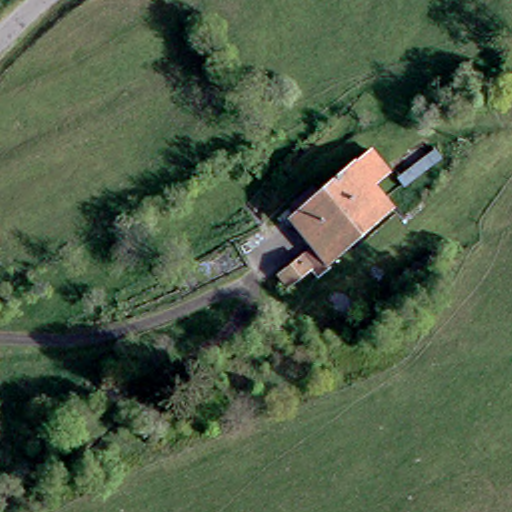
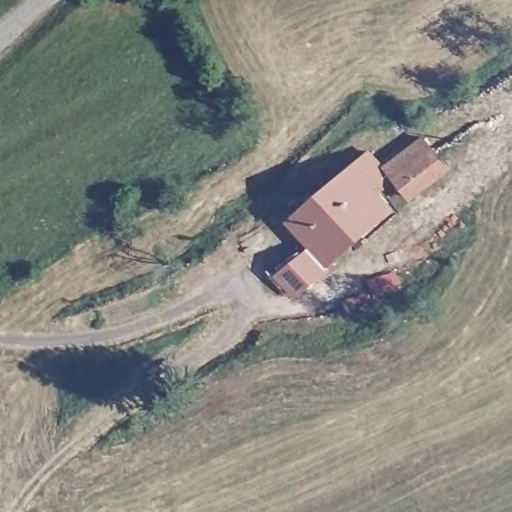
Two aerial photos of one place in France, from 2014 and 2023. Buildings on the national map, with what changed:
new [(378,191),(392,180),(384,170),(426,136),(452,169),(410,200),(399,185),(382,196),(378,191)]
unchanged [(314,249),(295,224),(373,158),(392,180),(378,191),(398,215),(320,280),(316,275),(296,291),(281,275),(314,249)]

